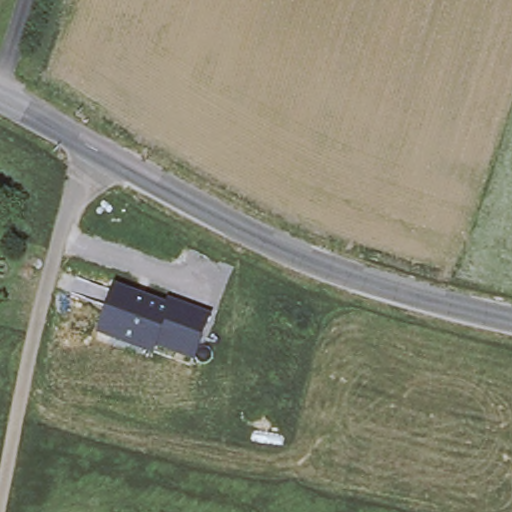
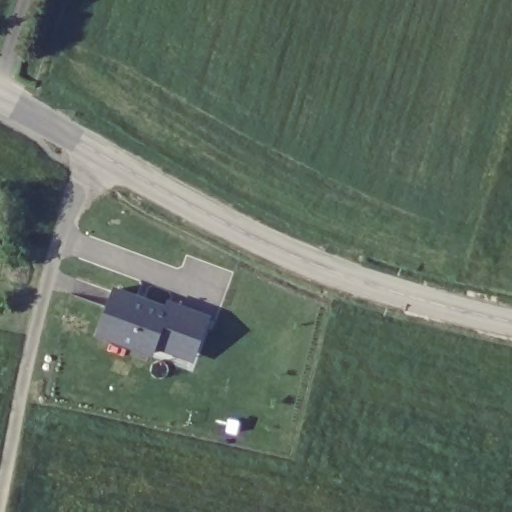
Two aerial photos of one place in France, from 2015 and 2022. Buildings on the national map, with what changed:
unchanged [(116,285),(167,303),(170,297),(212,313),(194,364),(159,351),(156,357),(98,335),(116,285)]

